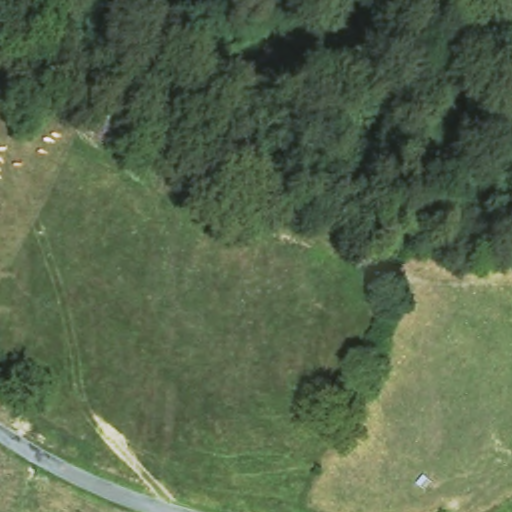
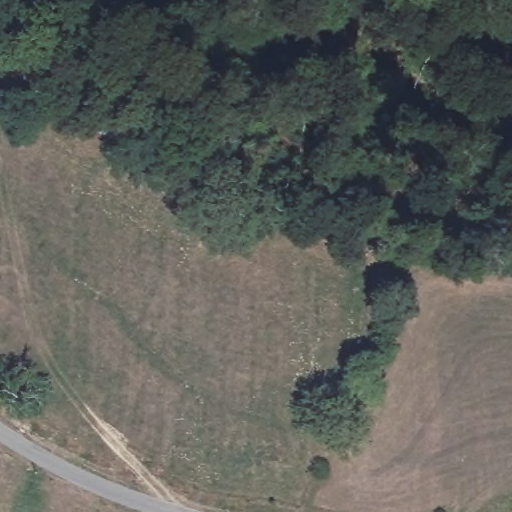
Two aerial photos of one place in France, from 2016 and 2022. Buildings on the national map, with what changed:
unchanged [(101,154),(74,137),(91,114),(116,128),(101,154)]

